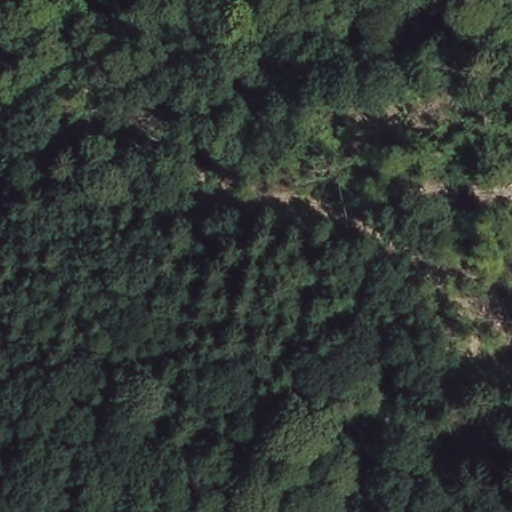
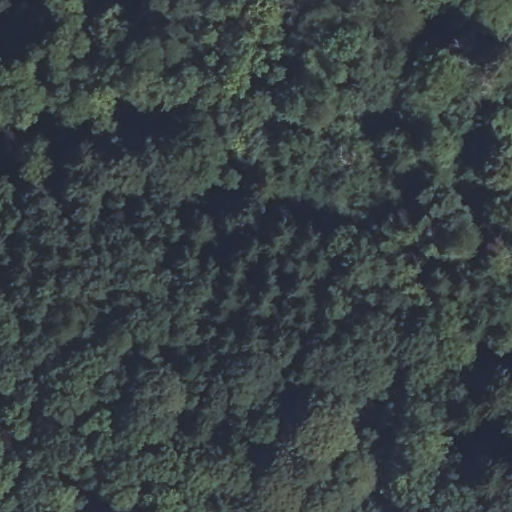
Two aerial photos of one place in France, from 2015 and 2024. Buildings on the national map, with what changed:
unchanged [(379,404),(384,482),(351,484),(347,405),(379,404)]

